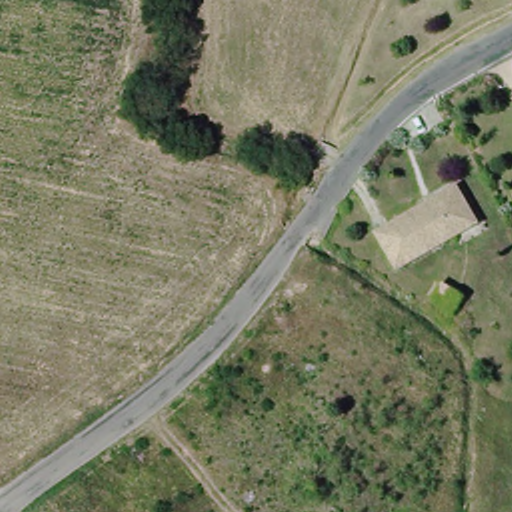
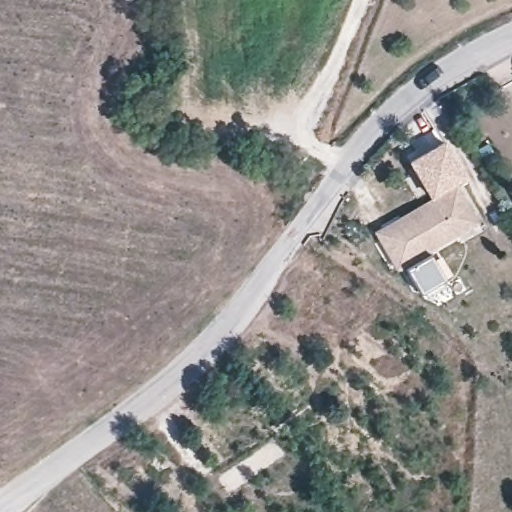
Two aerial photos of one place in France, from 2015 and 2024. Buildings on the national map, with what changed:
new [(430,197),(405,152),(440,132),(465,177),(453,183),(430,197)]
unchanged [(372,230),(430,197),(453,183),(472,213),(479,225),(457,237),(396,272),(372,230)]
unchanged [(441,280),(462,293),(452,310),(430,297),(441,280)]

